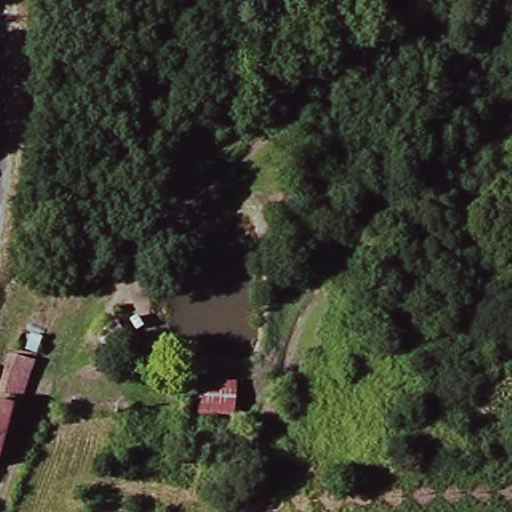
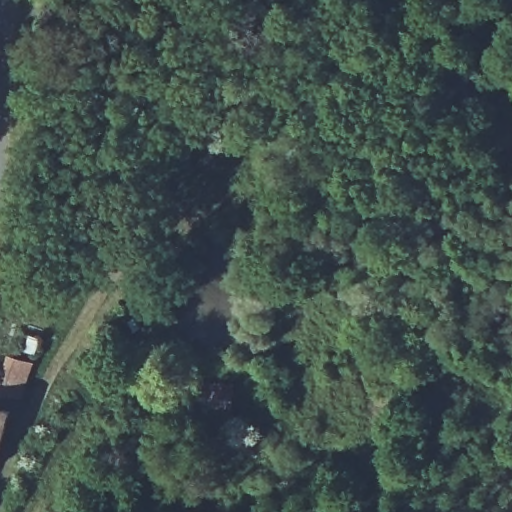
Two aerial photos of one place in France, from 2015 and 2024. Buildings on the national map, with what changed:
unchanged [(11,407),(0,441),(0,357),(2,352),(20,355),(27,332),(36,331),(11,407)]
unchanged [(204,413),(205,383),(234,387),(236,415),(204,413)]

